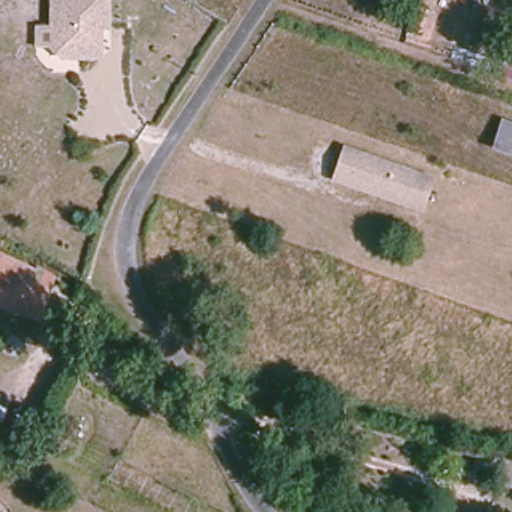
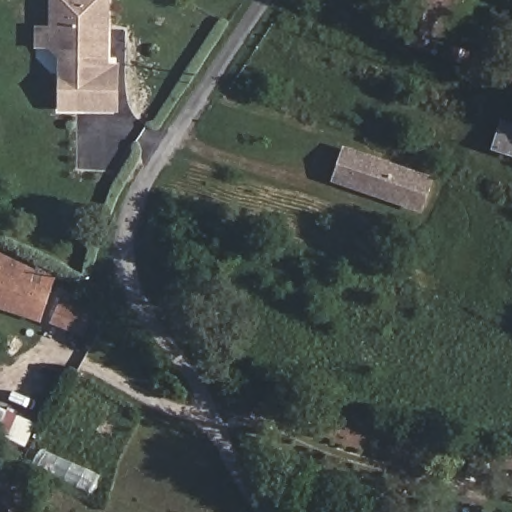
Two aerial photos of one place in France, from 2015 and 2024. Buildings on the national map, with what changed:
unchanged [(95,45),(94,57),(55,55),(46,46),(48,9),(48,0),(102,0),(101,26),(95,26),(95,39),(95,45)]
unchanged [(418,0),(438,0),(433,10),(418,0)]
new [(94,57),(95,45),(95,26),(101,26),(110,26),(110,62),(119,63),(118,112),(59,112),(56,55),(94,57)]
unchanged [(494,150),(502,124),(512,127),(512,155),(494,150)]
unchanged [(367,190),(331,179),(342,149),(428,177),(422,198),(419,208),(367,190)]
unchanged [(31,285),(50,296),(38,323),(0,306),(0,252),(38,270),(31,285)]
unchanged [(85,340),(47,325),(58,297),(95,311),(85,340)]

